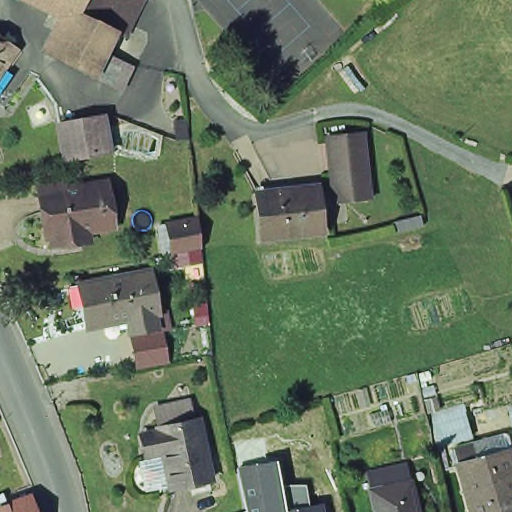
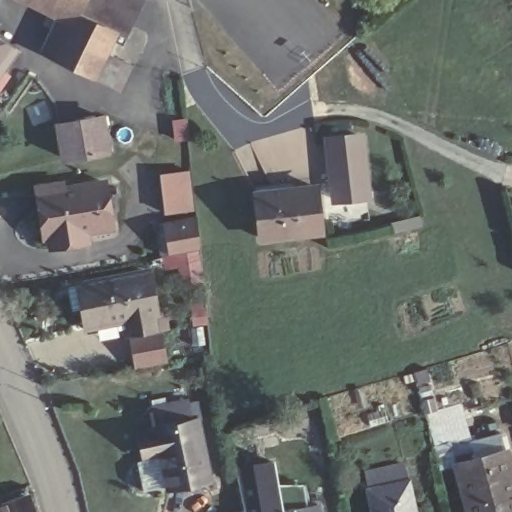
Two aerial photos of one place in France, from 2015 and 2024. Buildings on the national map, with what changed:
unchanged [(54,0),(53,1),(50,0),(54,0)]
unchanged [(53,1),(54,0),(115,0),(103,25),(77,12),(53,1)]
unchanged [(92,75),(55,57),(77,12),(103,25),(114,30),(104,51),(133,65),(122,89),(92,75)]
unchanged [(0,60),(0,36),(12,44),(0,60)]
unchanged [(0,74),(0,65),(4,69),(0,74)]
unchanged [(108,112),(114,147),(72,155),(65,120),(108,112)]
unchanged [(335,200),(329,140),(360,136),(367,196),(335,200)]
new [(188,169),(193,208),(165,211),(161,172),(188,169)]
unchanged [(54,247),(53,243),(52,236),(47,237),(40,200),(38,187),(62,182),(64,189),(104,180),(113,225),(87,230),(90,240),(54,247)]
unchanged [(262,192),(320,186),(324,231),(265,238),(262,192)]
unchanged [(186,250),(180,221),(198,218),(200,239),(201,247),(186,250)]
unchanged [(90,320),(86,298),(77,300),(73,280),(82,278),(147,265),(155,306),(152,307),(154,320),(130,324),(128,311),(90,320)]
unchanged [(160,324),(166,352),(137,358),(130,330),(160,324)]
unchanged [(200,477),(160,485),(152,450),(139,453),(134,431),(147,429),(147,426),(148,426),(144,406),(160,403),(178,400),(182,419),(187,417),(200,477)]
unchanged [(512,482),(512,512),(467,512),(455,465),(457,465),(453,447),(471,444),(499,438),(502,454),(505,453),(512,482)]
unchanged [(230,465),(274,457),(282,503),(317,496),(319,512),(238,512),(230,465)]
unchanged [(410,457),(421,512),(368,512),(360,470),(410,457)]
unchanged [(37,512),(0,512),(0,511),(32,499),(37,512)]

